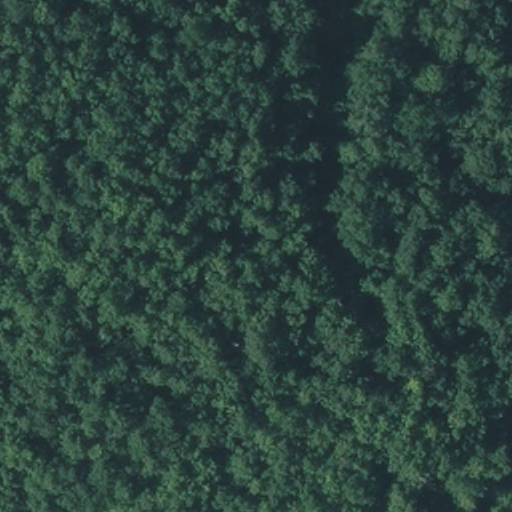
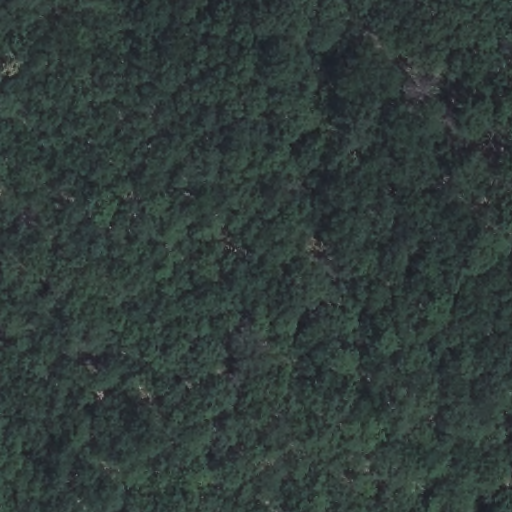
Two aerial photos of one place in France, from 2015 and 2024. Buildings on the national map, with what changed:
[]

